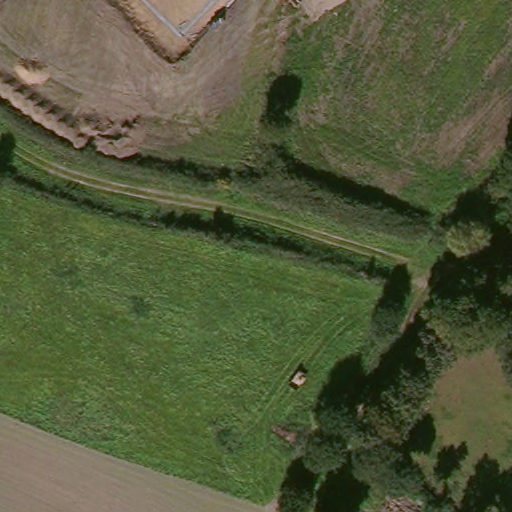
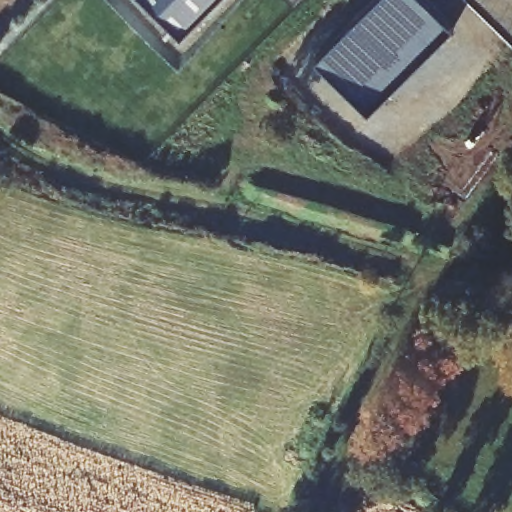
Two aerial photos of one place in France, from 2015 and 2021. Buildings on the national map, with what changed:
unchanged [(185,31),(151,0),(214,0),(185,31)]
new [(379,0),(420,0),(454,31),(369,121),(314,70),(379,0)]

